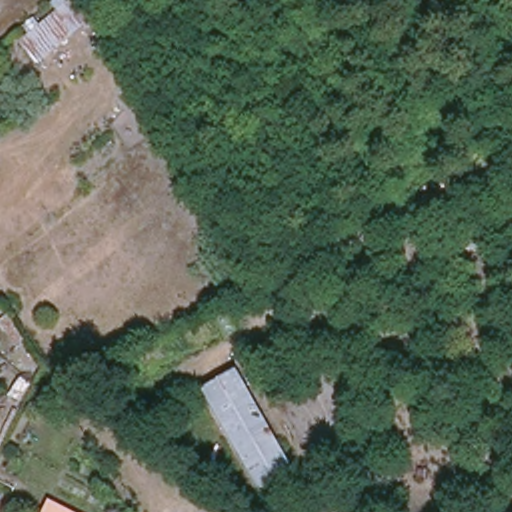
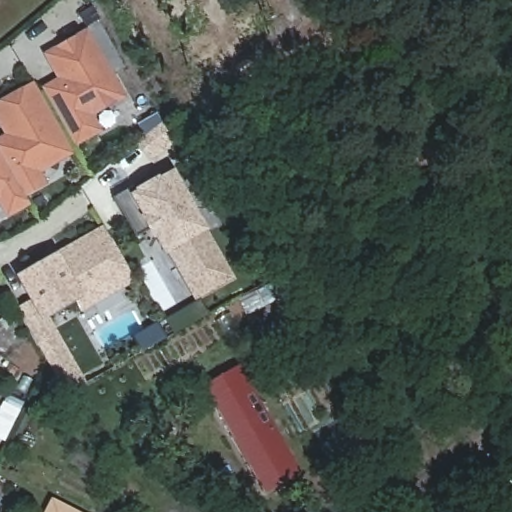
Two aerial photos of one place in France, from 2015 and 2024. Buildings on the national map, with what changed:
new [(93,115),(102,132),(74,147),(40,87),(55,78),(42,54),(87,28),(126,97),(93,115)]
new [(47,184),(24,196),(0,155),(0,137),(3,134),(0,128),(0,100),(33,81),(73,154),(40,173),(47,184)]
new [(0,206),(0,155),(24,196),(29,205),(7,218),(0,206)]
new [(209,230),(236,278),(193,303),(167,257),(164,259),(128,197),(175,169),(209,230)]
new [(81,312),(75,302),(49,317),(86,382),(65,394),(16,307),(27,299),(13,277),(56,252),(101,226),(134,282),(81,312)]
unchanged [(203,383),(241,365),(247,381),(299,474),(264,494),(211,400),(203,383)]
unchanged [(72,512),(47,512),(51,502),(72,512)]

